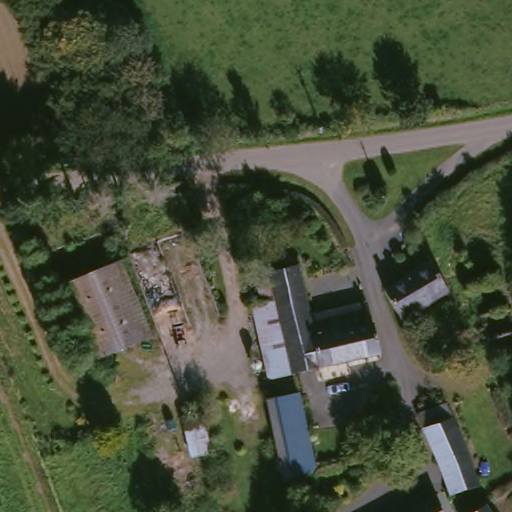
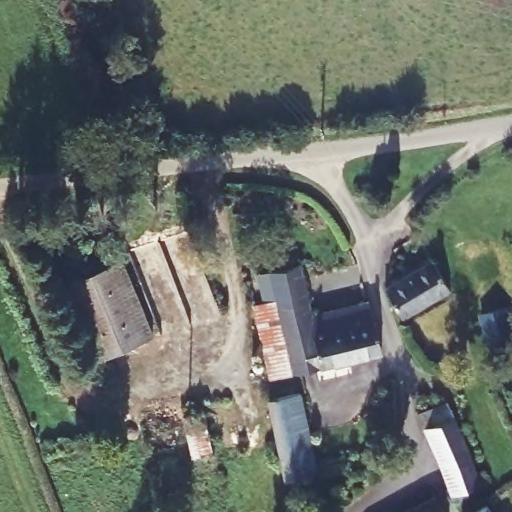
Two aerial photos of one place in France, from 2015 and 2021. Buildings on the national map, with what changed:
unchanged [(367,302),(370,305),(381,355),(262,379),(259,369),(246,297),(262,295),(272,292),(264,266),(294,259),(302,287),(309,315),(367,302)]
unchanged [(114,268),(146,344),(87,370),(56,295),(114,268)]
unchanged [(430,273),(443,302),(389,329),(378,299),(430,273)]
unchanged [(299,401),(314,482),(276,489),(264,405),(299,401)]
unchanged [(443,412),(472,491),(441,504),(410,425),(443,412)]
unchanged [(449,503),(470,492),(481,512),(447,512),(444,506),(449,503)]
unchanged [(416,512),(427,507),(429,512),(416,512)]

